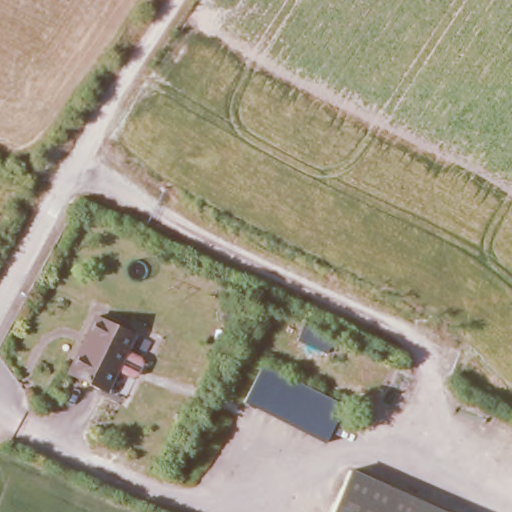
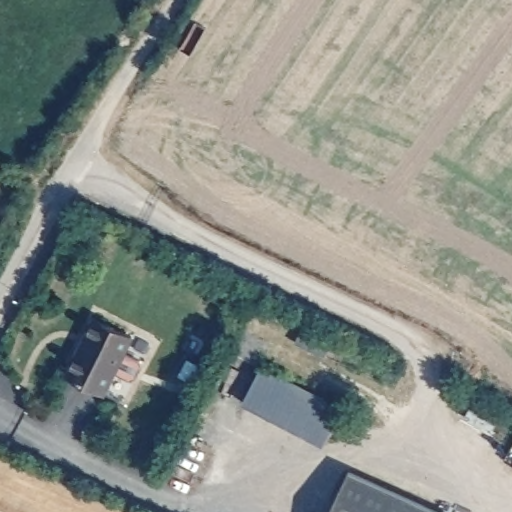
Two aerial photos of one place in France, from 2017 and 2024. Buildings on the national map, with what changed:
unchanged [(134,337),(106,393),(68,374),(96,318),(134,337)]
unchanged [(340,337),(332,355),(303,341),(310,325),(340,337)]
unchanged [(344,404),(324,445),(242,403),(262,363),(344,404)]
unchanged [(442,512),(332,512),(351,471),(442,512)]

